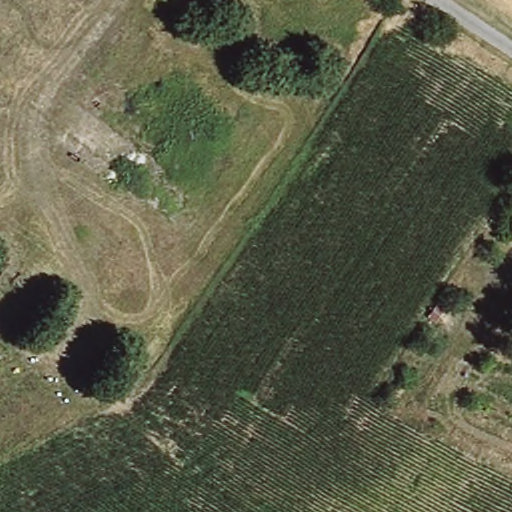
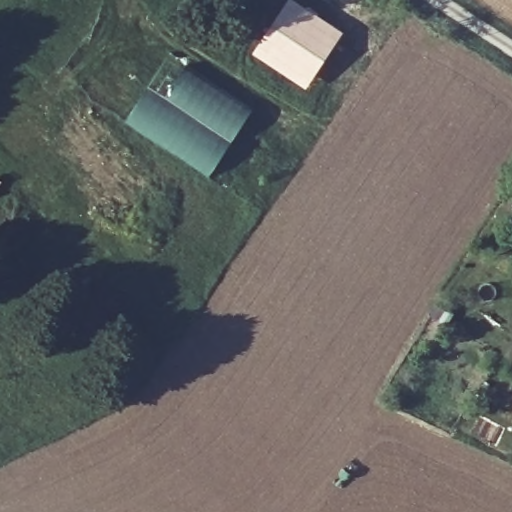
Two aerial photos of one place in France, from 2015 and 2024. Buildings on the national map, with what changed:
new [(295,0),(343,32),(306,90),(250,54),(287,0),(295,0)]
new [(167,52),(216,86),(252,109),(207,178),(122,125),(167,52)]

